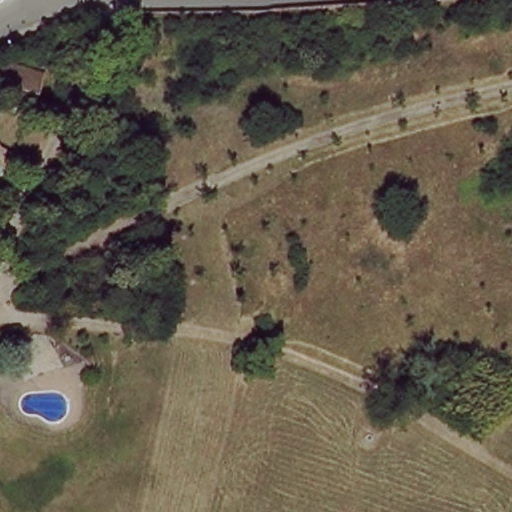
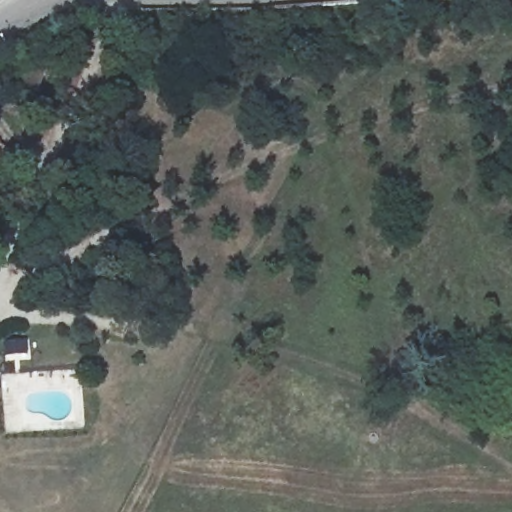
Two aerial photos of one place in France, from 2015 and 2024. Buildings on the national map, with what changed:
[]

